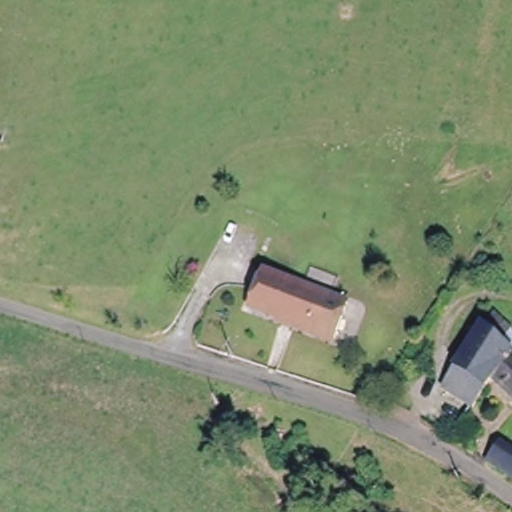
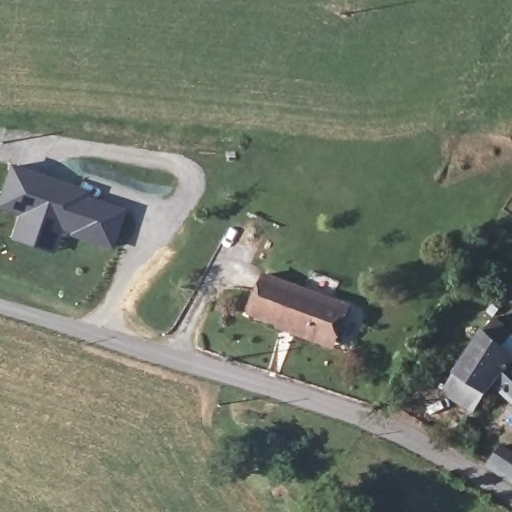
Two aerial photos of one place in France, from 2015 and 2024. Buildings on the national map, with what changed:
new [(17,210),(21,200),(0,193),(10,162),(75,184),(85,187),(83,193),(122,206),(110,243),(71,230),(71,227),(62,224),(17,210)]
unchanged [(272,324),(274,320),(242,309),(254,275),(339,303),(329,333),(326,342),(272,324)]
unchanged [(500,315),(512,326),(512,403),(497,389),(476,417),(441,391),(478,334),(493,321),(500,315)]
unchanged [(512,444),(512,478),(492,465),(509,441),(512,444)]

